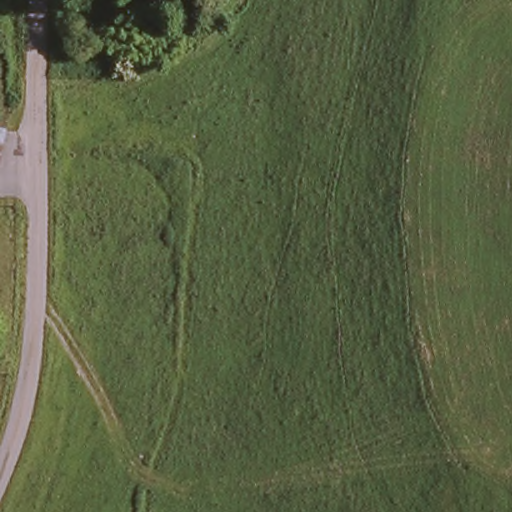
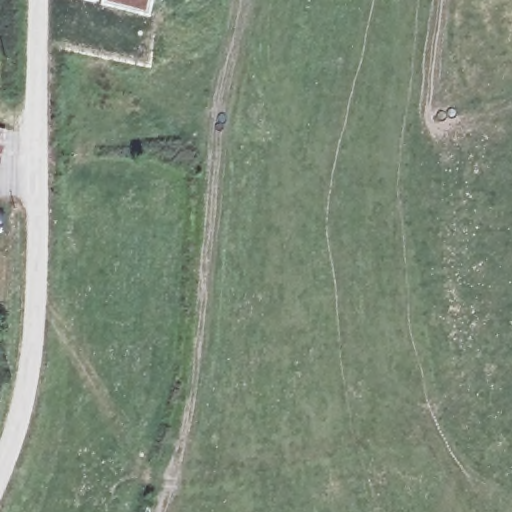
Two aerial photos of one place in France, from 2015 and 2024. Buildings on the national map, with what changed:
new [(101,3),(102,0),(150,0),(146,15),(101,3)]
unchanged [(0,156),(0,134),(3,134),(0,156)]

